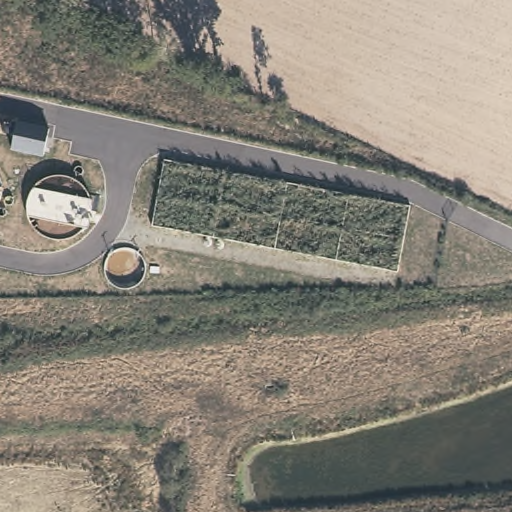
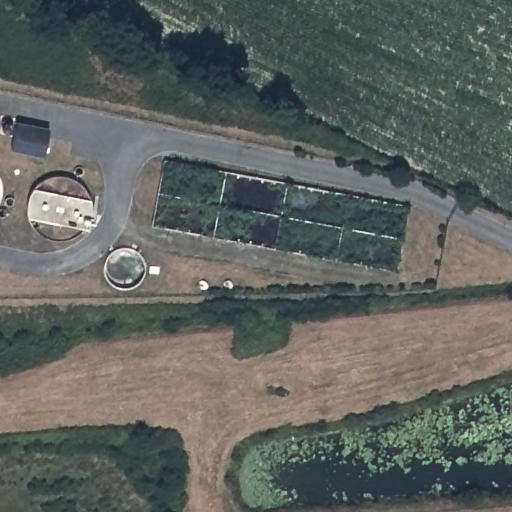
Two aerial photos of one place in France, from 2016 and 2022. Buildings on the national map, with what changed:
unchanged [(12,150),(19,123),(49,129),(44,156),(12,150)]

